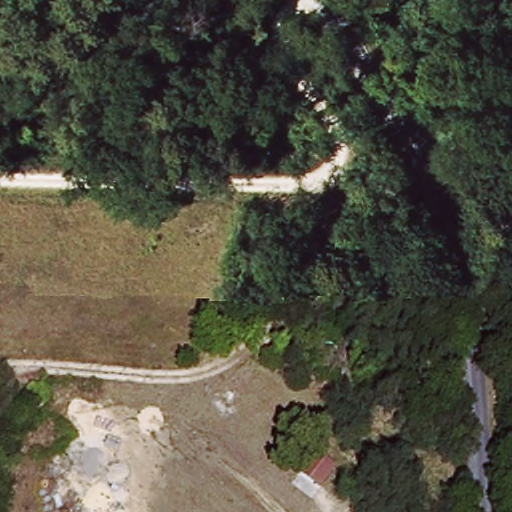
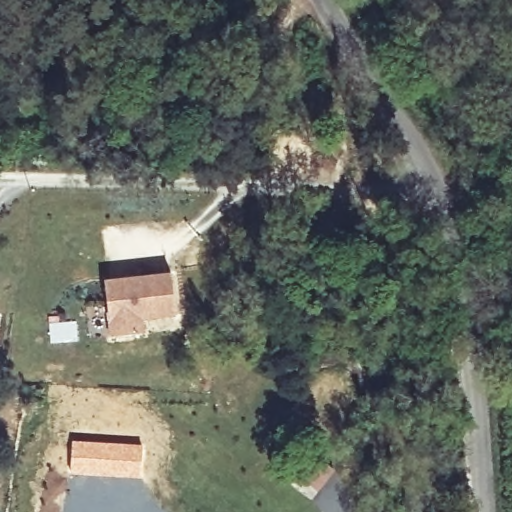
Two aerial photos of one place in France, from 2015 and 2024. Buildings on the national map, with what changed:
new [(175,275),(179,314),(145,317),(147,332),(115,335),(110,280),(175,275)]
new [(72,440),(143,444),(140,478),(70,472),(72,440)]
new [(307,469),(326,483),(312,501),(293,486),(307,469)]

